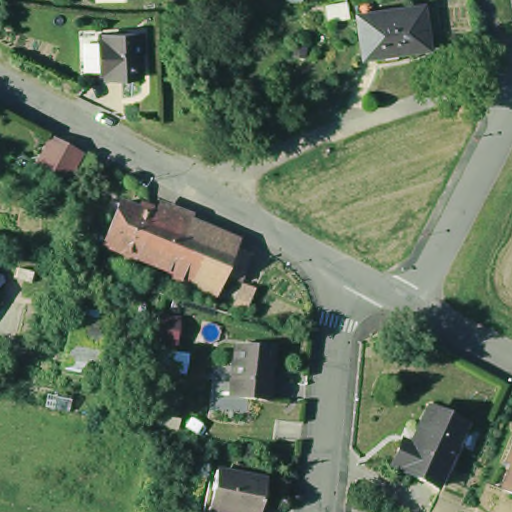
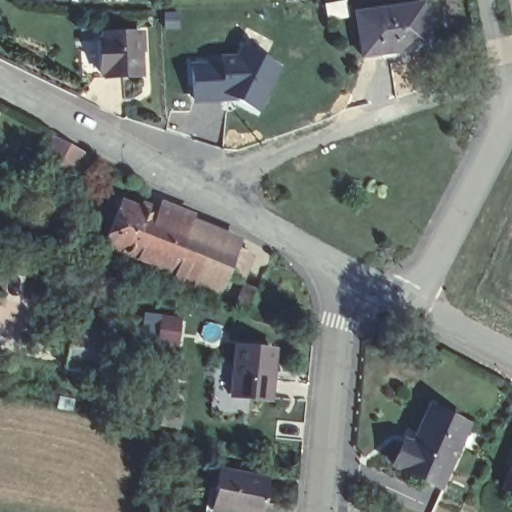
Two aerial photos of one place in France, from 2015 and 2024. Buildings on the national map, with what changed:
unchanged [(424,6),(432,49),(367,60),(360,16),(424,6)]
unchanged [(102,36),(102,32),(139,31),(141,72),(142,75),(104,76),(104,72),(97,72),(97,64),(96,37),(102,36)]
new [(219,60),(219,54),(237,53),(242,41),(285,65),(261,114),(237,101),(192,103),(191,60),(219,60)]
unchanged [(89,149),(74,184),(37,169),(55,134),(89,149)]
unchanged [(110,245),(127,202),(158,215),(141,258),(110,245)]
unchanged [(226,273),(219,289),(192,279),(174,271),(141,258),(158,215),(192,228),(210,236),(236,247),(253,253),(242,279),(226,273)]
unchanged [(240,306),(252,282),(262,287),(250,311),(240,306)]
new [(156,315),(176,317),(173,346),(153,344),(156,315)]
unchanged [(116,334),(110,370),(71,363),(77,327),(116,334)]
unchanged [(227,396),(230,343),(276,346),(271,403),(227,396)]
unchanged [(450,489),(406,469),(417,446),(424,449),(440,413),(477,431),(450,489)]
unchanged [(499,492),(512,461),(512,499),(499,492)]
unchanged [(222,502),(222,496),(216,496),(221,473),(269,481),(265,512),(215,512),(215,502),(222,502)]

